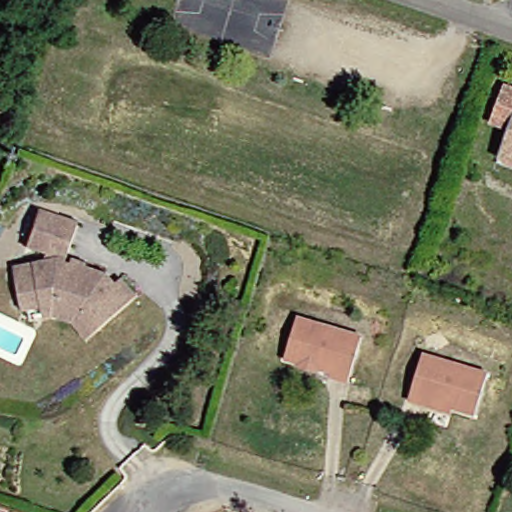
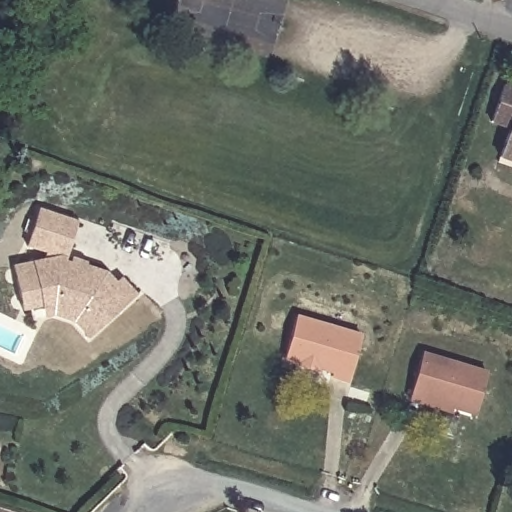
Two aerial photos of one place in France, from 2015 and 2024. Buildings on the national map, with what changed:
unchanged [(495,152),(506,124),(487,117),(500,80),(512,84),(512,159),(495,152)]
unchanged [(3,265),(34,258),(36,252),(17,245),(29,208),(68,220),(54,260),(74,267),(74,265),(91,270),(95,271),(105,282),(111,277),(125,295),(101,316),(89,326),(70,305),(47,297),(31,300),(33,305),(12,310),(3,265)]
unchanged [(320,376),(322,372),(274,358),(288,316),(353,336),(339,382),(320,376)]
unchanged [(413,350),(478,370),(465,411),(418,397),(417,401),(399,395),(413,350)]

